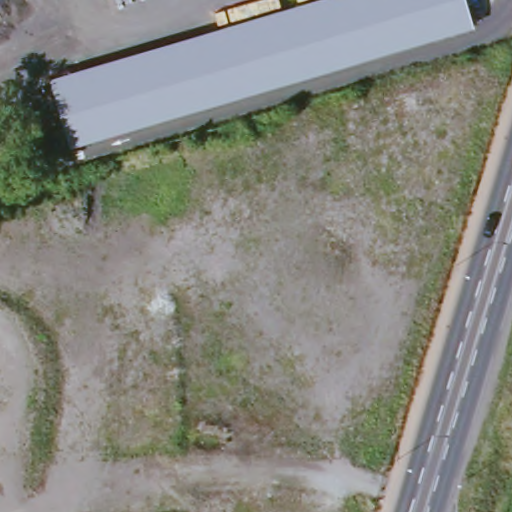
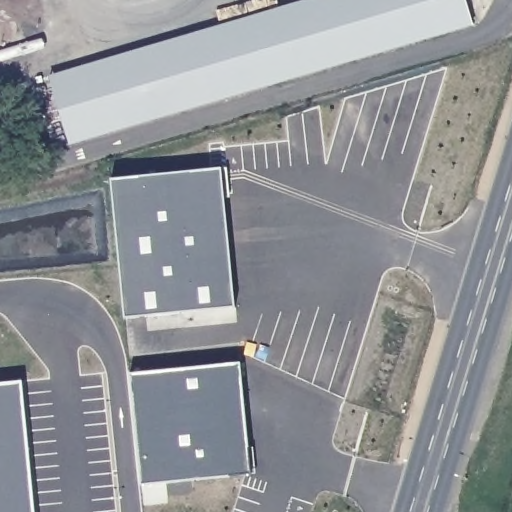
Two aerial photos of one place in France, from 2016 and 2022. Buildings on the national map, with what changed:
unchanged [(49,75),(305,0),(467,0),(474,24),(69,144),(49,75)]
new [(223,168),(236,307),(125,318),(111,179),(223,168)]
new [(241,362),(252,475),(141,485),(129,373),(241,362)]
new [(36,512),(0,512),(0,383),(22,381),(36,512)]

